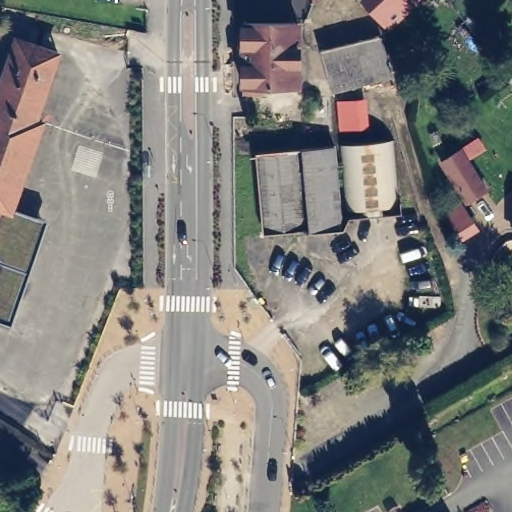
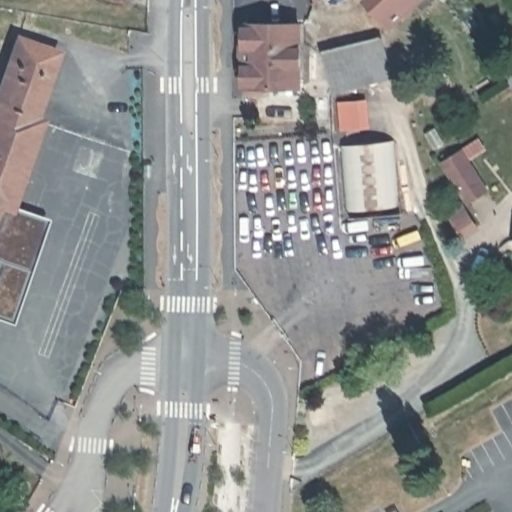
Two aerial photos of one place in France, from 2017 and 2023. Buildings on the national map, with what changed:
unchanged [(315,4),(311,0),(319,0),(315,4)]
unchanged [(387,20),(368,0),(409,0),(387,20)]
unchanged [(271,20),(272,83),(251,83),(251,92),(233,93),(233,20),(271,20)]
unchanged [(0,87),(18,37),(58,51),(36,116),(42,119),(11,207),(3,204),(0,203),(0,87)]
unchanged [(337,95),(325,52),(384,37),(396,80),(337,95)]
unchanged [(138,61),(137,78),(129,78),(129,60),(138,61)]
unchanged [(399,203),(361,206),(346,207),(341,142),(394,138),(398,183),(399,203)]
demolished [(325,227),(309,229),(306,226),(264,230),(258,150),(334,144),(339,219),(339,226),(325,227)]
unchanged [(460,152),(485,191),(465,204),(440,164),(460,152)]
unchanged [(0,203),(3,204),(0,212),(0,203)]
unchanged [(0,319),(0,212),(3,204),(11,207),(48,220),(11,323),(0,319)]

